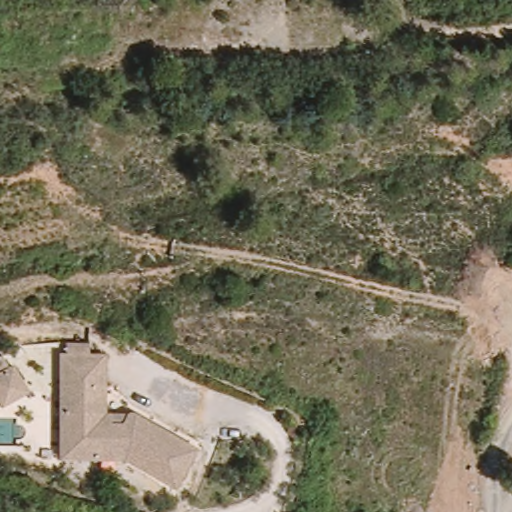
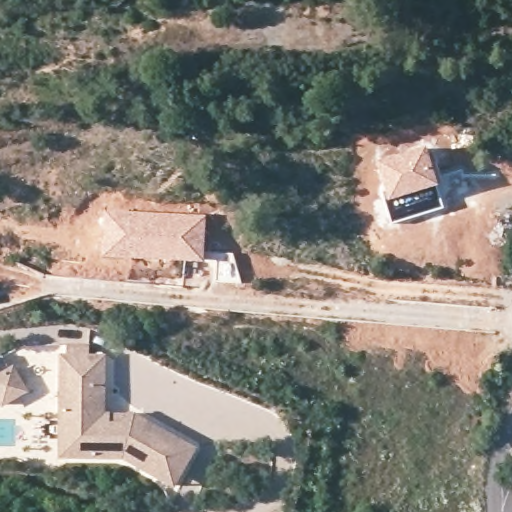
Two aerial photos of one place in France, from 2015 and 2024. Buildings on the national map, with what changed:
new [(427,144),(440,188),(387,202),(377,157),(427,144)]
new [(440,188),(444,208),(392,223),(387,202),(440,188)]
new [(105,208),(156,210),(207,214),(205,260),(127,259),(102,257),(105,208)]
unchanged [(150,482),(120,461),(90,458),(68,456),(57,455),(59,436),(61,411),(66,354),(71,354),(72,343),(95,345),(94,356),(109,358),(104,416),(110,416),(130,418),(132,415),(193,458),(173,487),(167,494),(150,482)]
demolished [(27,355),(16,361),(11,350),(22,344),(27,355)]
unchanged [(26,397),(1,408),(0,407),(0,378),(14,372),(26,397)]

